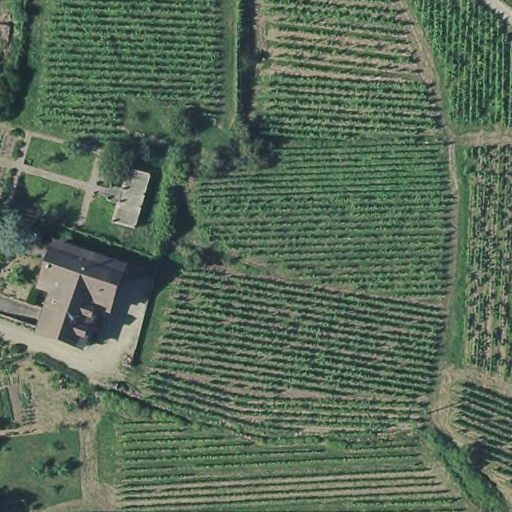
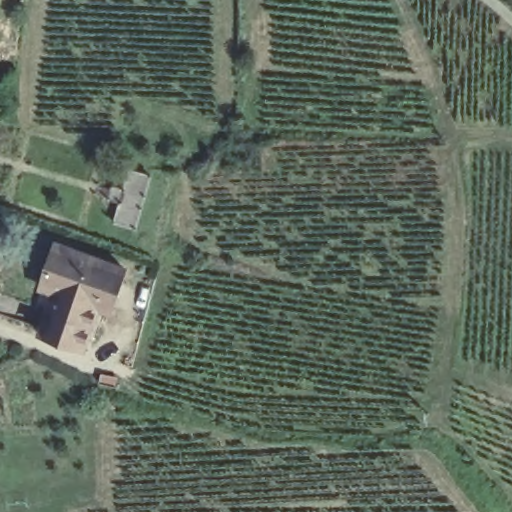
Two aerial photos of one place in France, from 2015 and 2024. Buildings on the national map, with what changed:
unchanged [(147,172),(132,225),(110,219),(125,166),(147,172)]
unchanged [(110,306),(97,302),(83,343),(41,329),(54,287),(41,283),(56,241),(124,263),(110,306)]

